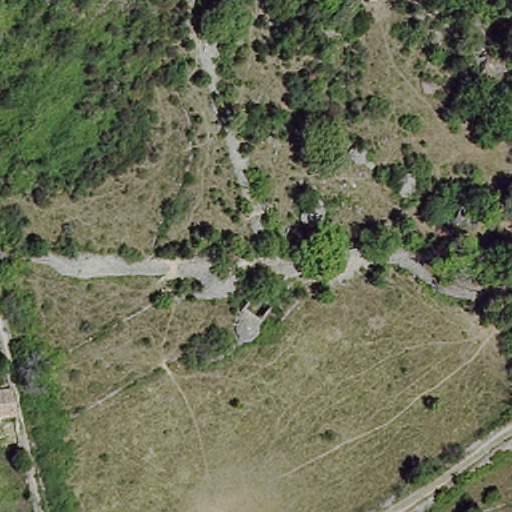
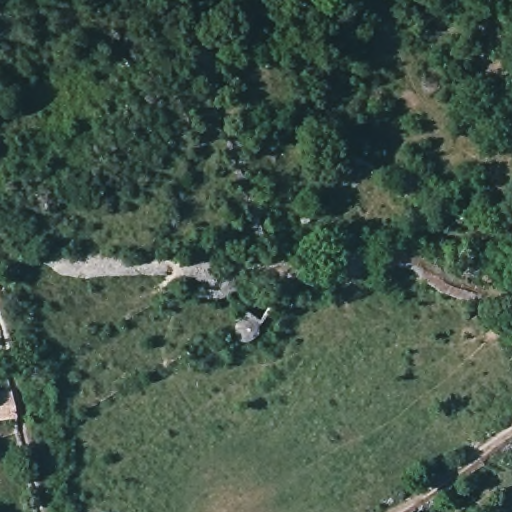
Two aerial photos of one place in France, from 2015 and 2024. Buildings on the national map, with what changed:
unchanged [(0,385),(11,383),(17,411),(0,414),(0,385)]

